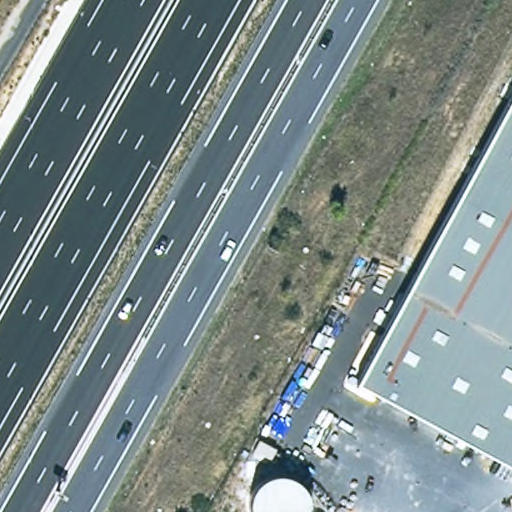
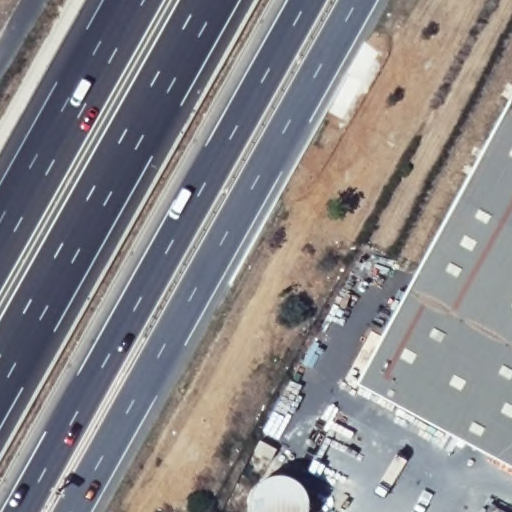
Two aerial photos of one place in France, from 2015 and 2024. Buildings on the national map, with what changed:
unchanged [(358,382),(420,267),(512,98),(512,465),(358,382)]

